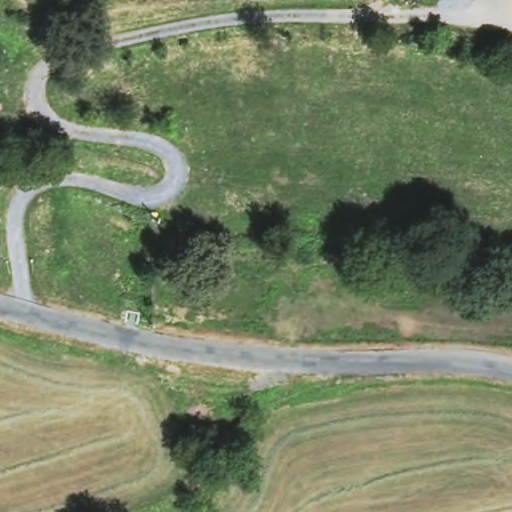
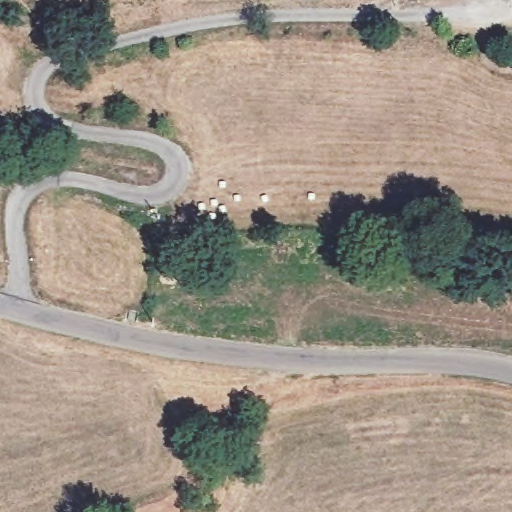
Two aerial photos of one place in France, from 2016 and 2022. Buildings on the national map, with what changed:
[]

